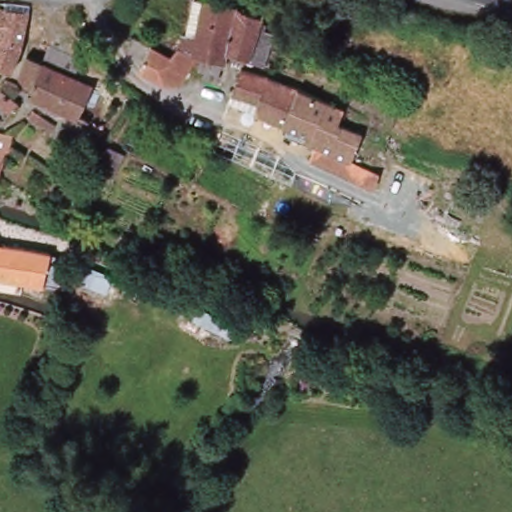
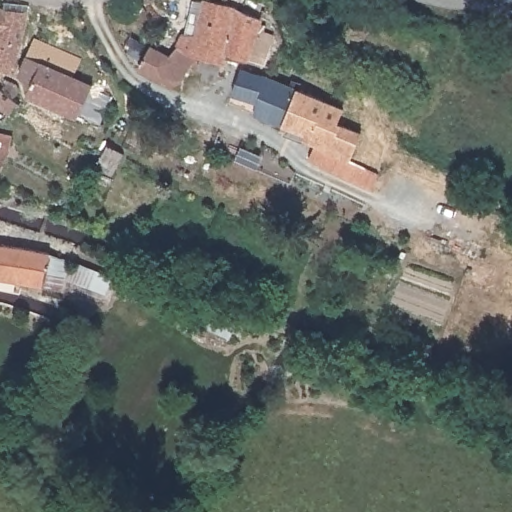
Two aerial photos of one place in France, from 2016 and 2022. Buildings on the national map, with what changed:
unchanged [(0,5),(8,6),(9,0),(16,0),(33,2),(32,10),(26,46),(17,72),(0,65),(0,5)]
unchanged [(207,75),(210,66),(208,65),(209,57),(203,56),(184,46),(178,44),(187,31),(197,1),(207,4),(208,0),(223,0),(243,5),(234,55),(231,65),(227,65),(222,80),(207,75)]
unchanged [(254,60),(234,55),(243,5),(266,20),(266,25),(271,27),(269,34),(275,35),(277,35),(268,65),(261,62),(254,60)]
unchanged [(182,80),(170,79),(142,60),(148,49),(153,43),(163,50),(171,55),(178,44),(184,46),(203,56),(182,80)]
unchanged [(66,109),(35,92),(38,84),(24,76),(32,55),(47,62),(55,45),(87,60),(79,78),(96,85),(84,117),(66,109)]
unchanged [(378,191),(359,183),(312,161),(317,147),(308,142),(306,144),(305,144),(303,144),(301,143),(299,141),(297,139),(298,135),(298,134),(299,132),(256,113),(233,105),(235,97),(238,91),(245,72),(344,112),(339,126),(367,138),(360,161),(366,164),(385,172),(378,191)]
unchanged [(19,84),(21,86),(22,90),(21,93),(18,99),(20,100),(24,104),(10,124),(10,125),(0,116),(0,96),(11,79),(16,81),(19,84)]
unchanged [(51,135),(49,137),(41,131),(46,123),(55,129),(51,135)]
unchanged [(6,175),(0,175),(0,133),(19,135),(6,175)]
unchanged [(0,237),(5,243),(59,256),(51,288),(0,277),(0,237)]

